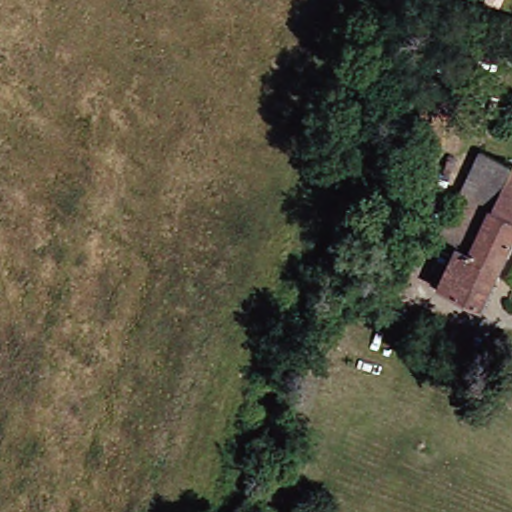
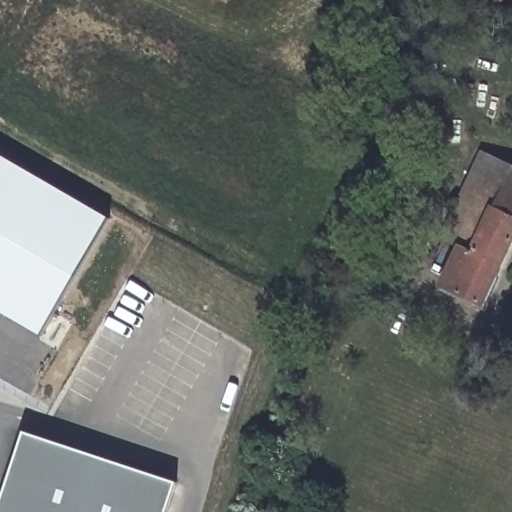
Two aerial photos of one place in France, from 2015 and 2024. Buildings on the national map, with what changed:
unchanged [(448,207),(477,146),(509,160),(512,161),(512,224),(477,299),(457,290),(437,280),(454,242),(452,242),(435,234),(448,207)]
unchanged [(400,192),(372,183),(380,157),(408,166),(400,192)]
new [(39,336),(0,313),(0,158),(106,219),(39,336)]
unchanged [(510,277),(512,273),(512,278),(510,277)]
new [(0,501),(23,431),(177,482),(167,512),(0,512),(0,501)]

